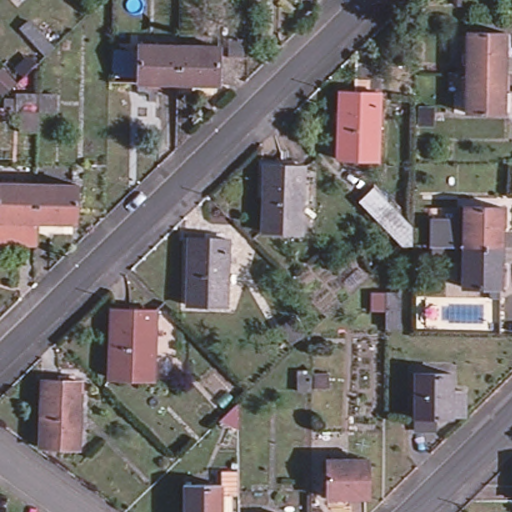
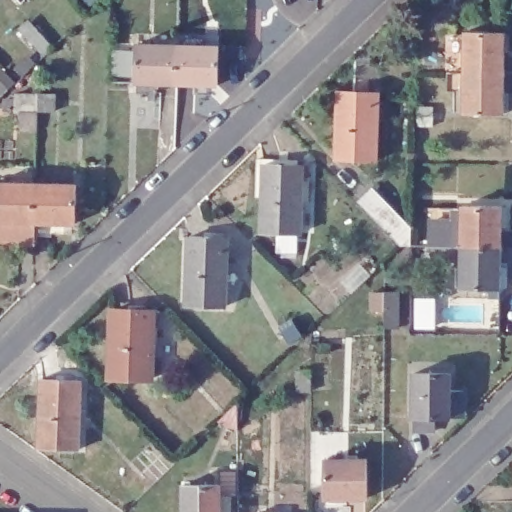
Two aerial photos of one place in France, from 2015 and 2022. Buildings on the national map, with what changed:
unchanged [(35,26),(58,52),(50,60),(27,34),(35,26)]
unchanged [(470,73),(471,33),(509,33),(509,74),(470,73)]
unchanged [(220,85),(181,83),(141,82),(142,44),(182,45),(182,34),(198,35),(197,45),(222,46),(220,85)]
unchanged [(470,114),(470,73),(509,74),(508,114),(470,114)]
unchanged [(338,156),(340,89),(381,90),(380,158),(338,156)]
unchanged [(62,113),(43,112),(22,112),(22,96),(44,96),(62,97),(62,113)]
unchanged [(305,165),(304,232),(263,231),(264,164),(305,165)]
unchanged [(0,236),(0,215),(0,175),(40,177),(82,179),(80,218),(39,216),(38,237),(0,236)]
unchanged [(396,241),(357,202),(372,187),(408,229),(396,241)]
unchanged [(468,207),(507,209),(507,249),(467,248),(468,207)]
unchanged [(187,304),(188,237),(230,238),(228,305),(187,304)]
unchanged [(507,249),(506,287),(467,287),(467,248),(507,249)]
unchanged [(406,294),(407,313),(392,313),(378,313),(378,295),(392,294),(406,294)]
unchanged [(155,312),(152,378),(110,377),(113,310),(155,312)]
unchanged [(282,331),(296,324),(305,342),(292,349),(282,331)]
unchanged [(420,426),(420,414),(420,370),(458,370),(457,414),(457,426),(420,426)]
unchanged [(315,377),(315,398),(302,398),(300,377),(315,377)]
unchanged [(42,445),(45,380),(85,382),(82,447),(42,445)]
unchanged [(242,407),(243,438),(223,425),(242,407)]
unchanged [(368,459),(368,497),(328,497),(327,459),(368,459)]
unchanged [(183,512),(183,485),(220,485),(220,498),(230,497),(230,512),(183,512)]

